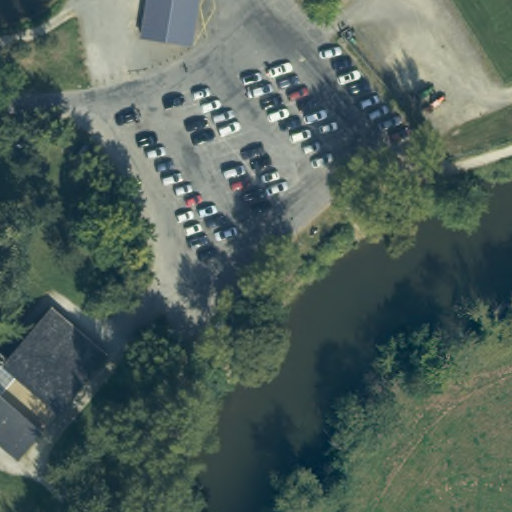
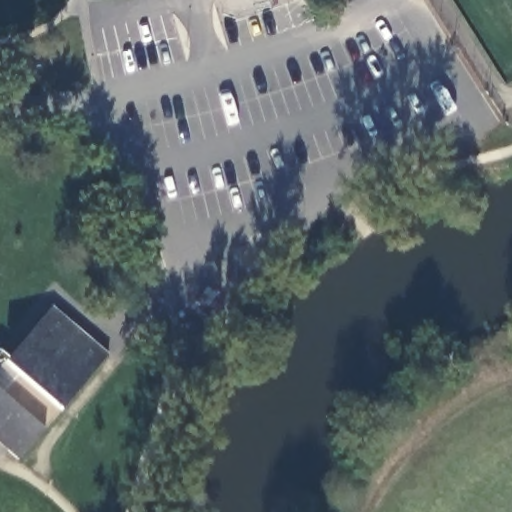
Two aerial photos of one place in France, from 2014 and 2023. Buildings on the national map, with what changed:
demolished [(189,42),(138,34),(144,0),(196,0),(189,42)]
unchanged [(0,450),(0,396),(13,379),(1,368),(49,312),(106,359),(17,464),(0,450)]

